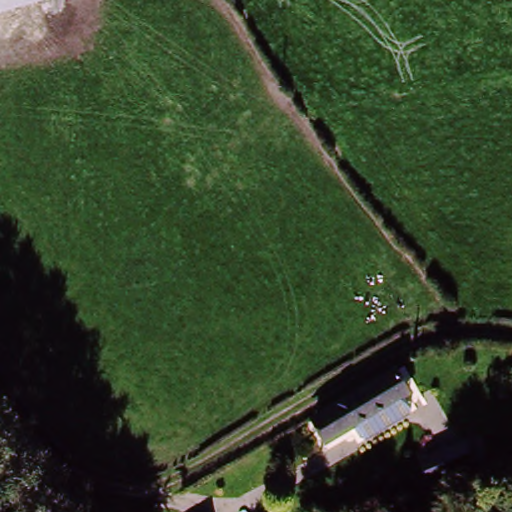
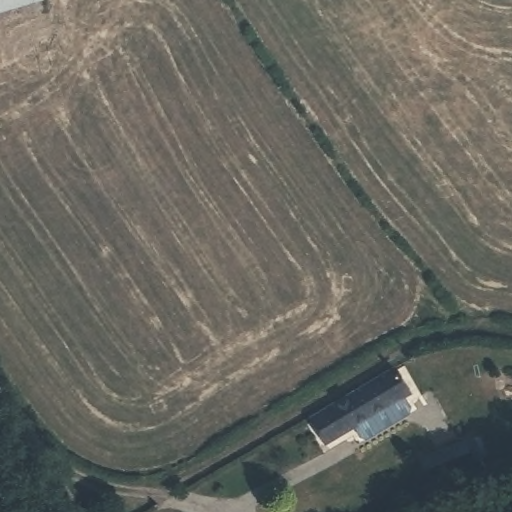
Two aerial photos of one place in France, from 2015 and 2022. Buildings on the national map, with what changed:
unchanged [(0,0),(45,0),(0,13),(0,0)]
unchanged [(311,416),(326,408),(389,371),(403,396),(400,397),(351,428),(341,434),(326,443),(311,416)]
unchanged [(351,428),(400,397),(407,411),(406,418),(366,443),(359,441),(351,428)]
unchanged [(420,460),(462,440),(475,456),(467,462),(432,481),(420,460)]

